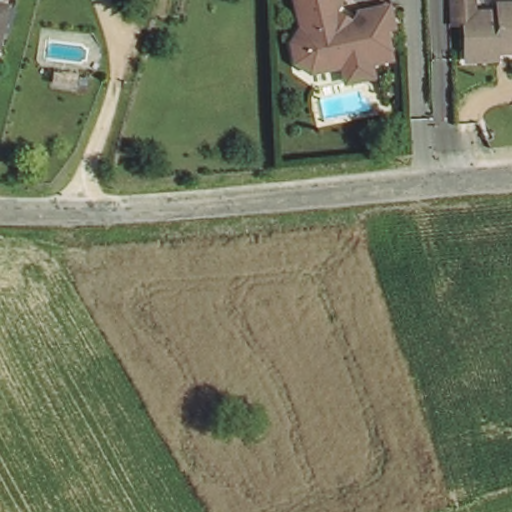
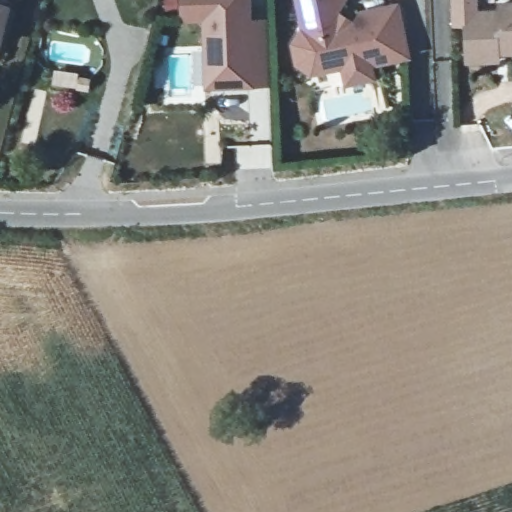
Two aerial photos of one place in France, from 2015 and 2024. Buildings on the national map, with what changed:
unchanged [(2,0),(8,1),(0,29),(0,0),(2,0)]
new [(205,89),(203,21),(180,22),(180,0),(251,0),(252,19),(267,18),(270,85),(252,87),(205,89)]
unchanged [(334,12),(350,19),(352,11),(387,4),(390,30),(377,32),(377,78),(354,82),(355,74),(294,80),(291,56),(282,48),(292,33),(288,0),(336,0),(334,4),(334,12)]
unchanged [(470,49),(469,17),(503,15),(504,5),(512,5),(512,53),(505,54),(504,61),(489,62),(470,64),(470,49)]

